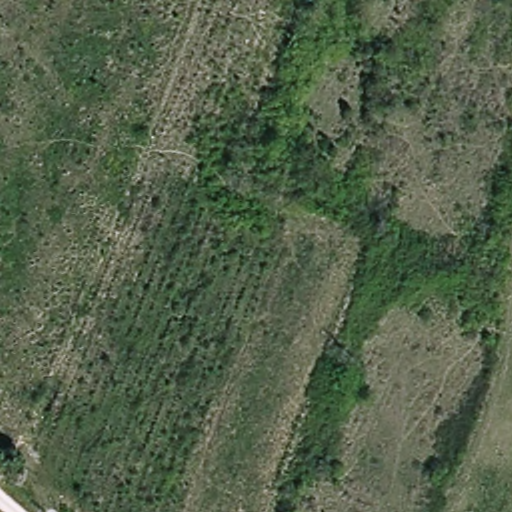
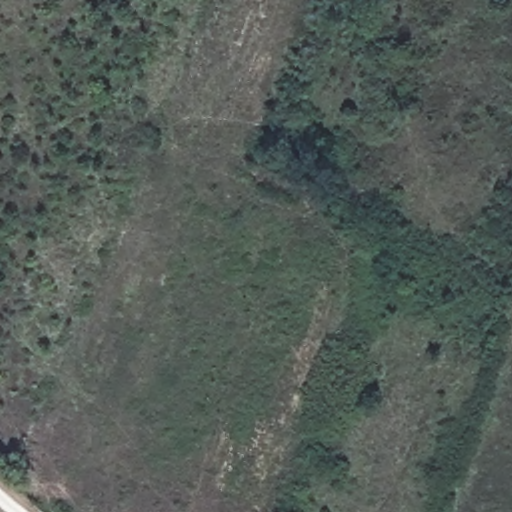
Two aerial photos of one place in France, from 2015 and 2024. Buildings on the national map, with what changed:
unchanged [(4,467),(23,472),(17,490),(0,486),(0,477),(4,467)]

